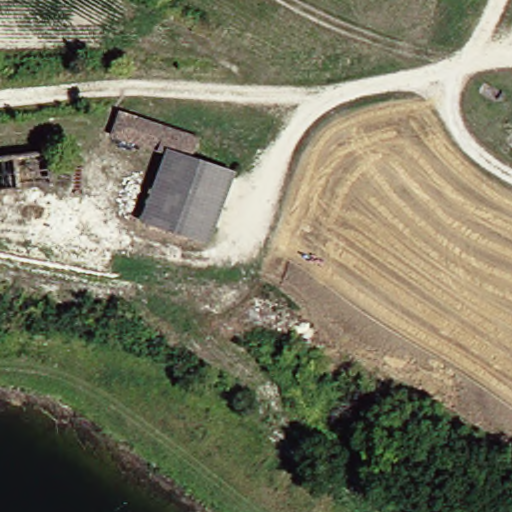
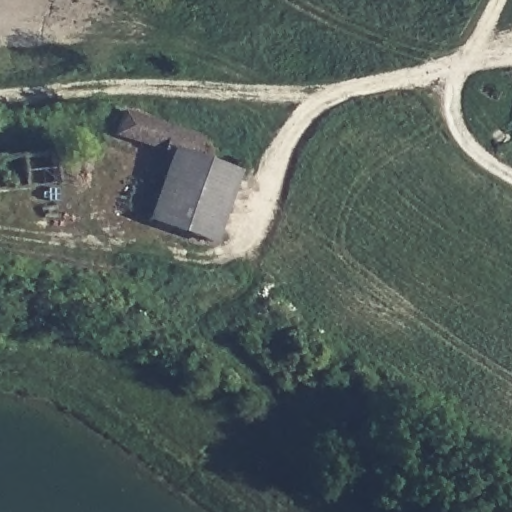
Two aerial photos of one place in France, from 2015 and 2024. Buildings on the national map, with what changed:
unchanged [(165,159),(108,139),(115,115),(194,141),(185,165),(165,159)]
unchanged [(225,178),(205,247),(142,227),(165,159),(185,165),(225,178)]

